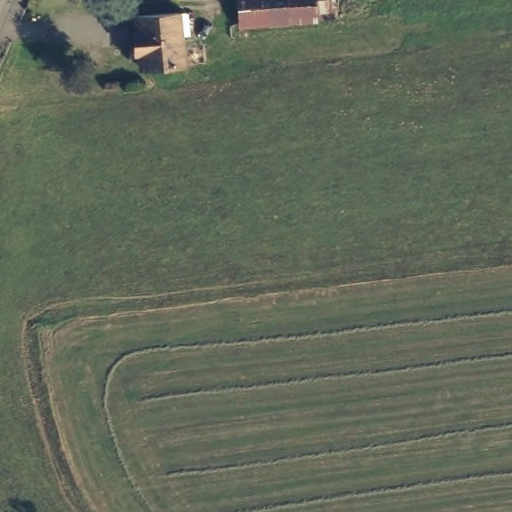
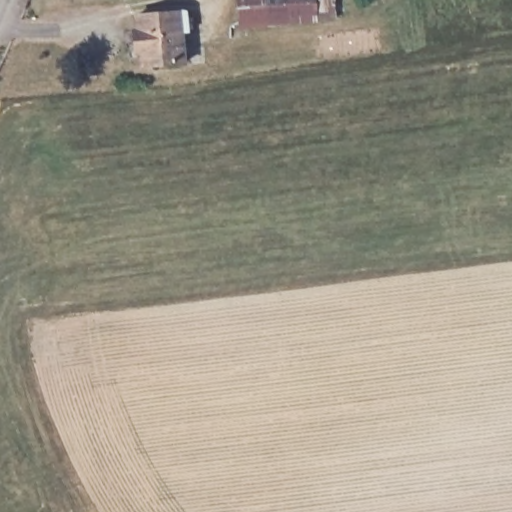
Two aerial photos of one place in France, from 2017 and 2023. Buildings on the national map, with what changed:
unchanged [(239,23),(238,0),(336,0),(337,11),(239,23)]
unchanged [(135,64),(135,48),(128,48),(127,26),(133,24),(132,10),(195,5),(195,25),(184,26),(187,59),(135,64)]

